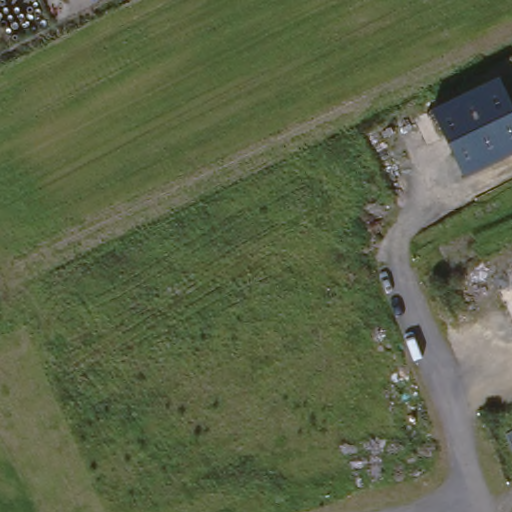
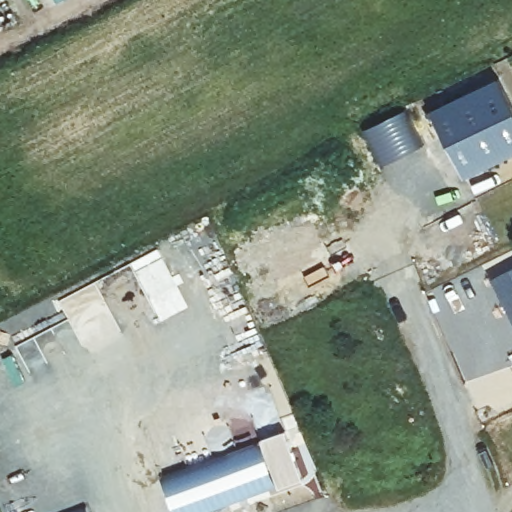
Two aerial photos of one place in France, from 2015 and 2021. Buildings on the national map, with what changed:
unchanged [(430,109),(499,78),(512,106),(512,156),(464,179),(430,109)]
demolished [(512,319),(491,278),(512,267),(512,319)]
new [(288,436),(306,484),(282,493),(265,444),(288,436)]
new [(282,493),(228,512),(177,512),(165,479),(265,444),(282,493)]

